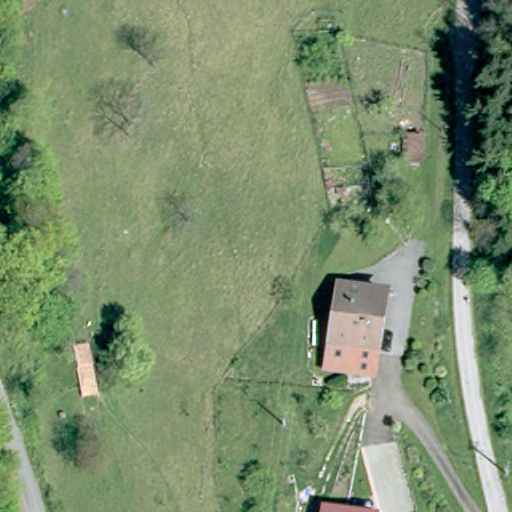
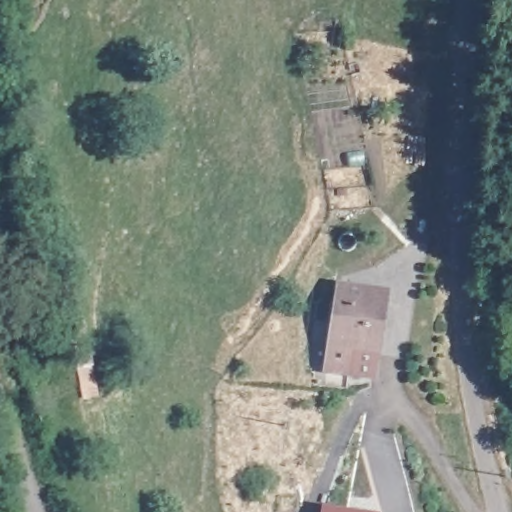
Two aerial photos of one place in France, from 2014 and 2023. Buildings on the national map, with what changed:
unchanged [(424,159),(407,159),(408,132),(428,132),(424,159)]
unchanged [(374,341),(371,363),(328,358),(338,275),(381,280),(374,341)]
unchanged [(363,512),(317,512),(319,506),(363,512)]

